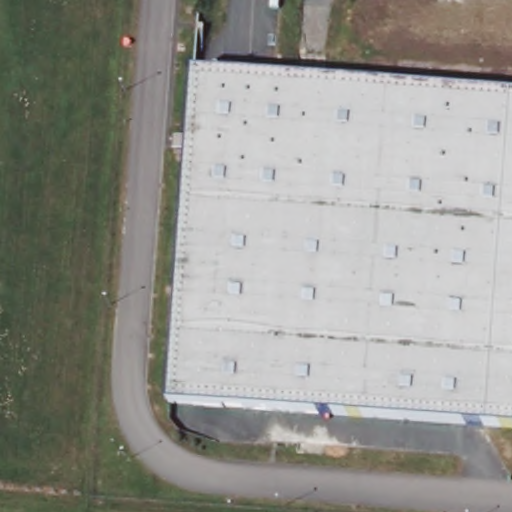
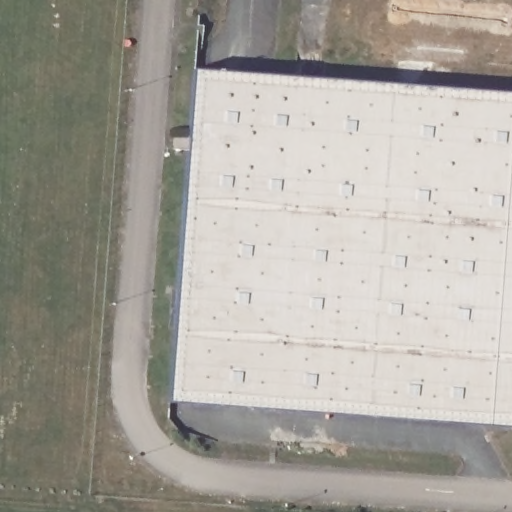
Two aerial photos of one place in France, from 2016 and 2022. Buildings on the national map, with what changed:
unchanged [(193,70),(512,94),(512,430),(169,404),(193,70)]

